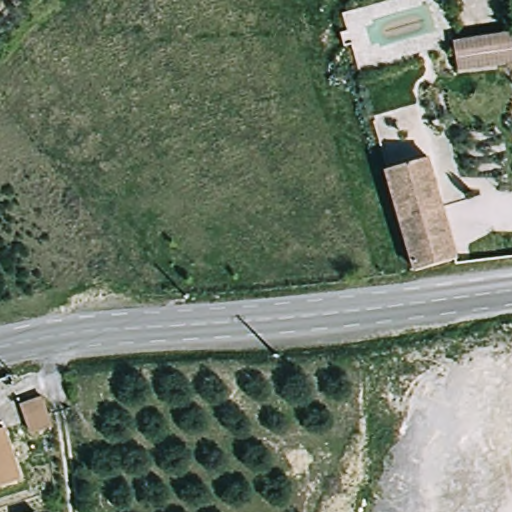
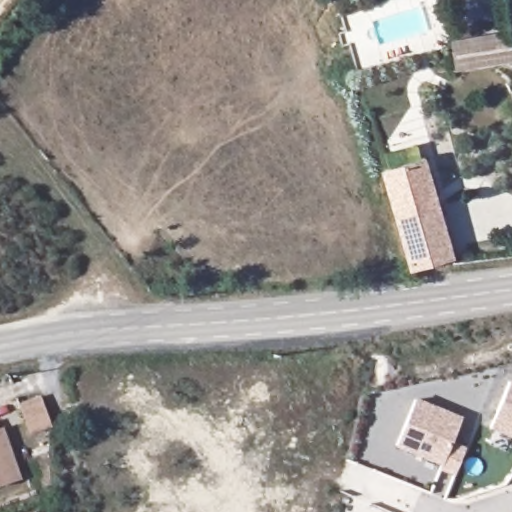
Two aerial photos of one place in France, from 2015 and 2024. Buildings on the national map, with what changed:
unchanged [(512,29),(512,49),(455,59),(452,40),(512,29)]
unchanged [(458,74),(455,59),(512,49),(512,65),(458,74)]
unchanged [(389,170),(430,158),(458,257),(415,270),(401,222),(389,170)]
new [(490,429),(508,382),(512,384),(512,438),(490,429)]
unchanged [(31,435),(20,405),(37,399),(48,427),(31,435)]
new [(441,470),(443,465),(397,447),(415,400),(462,419),(453,442),(467,447),(456,476),(441,470)]
unchanged [(23,482),(0,490),(0,428),(3,427),(23,482)]

